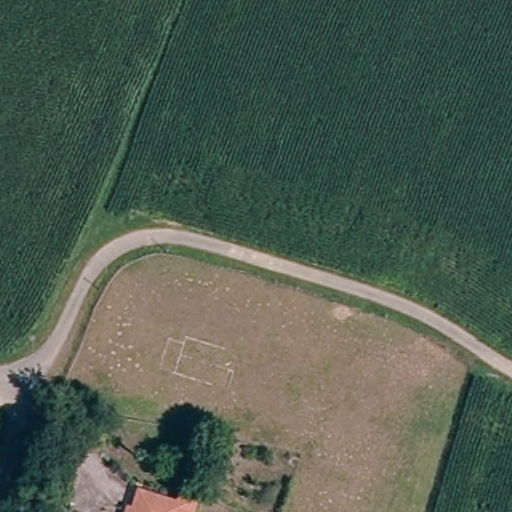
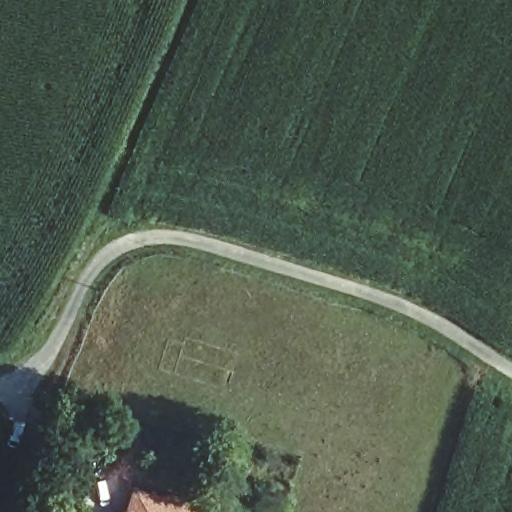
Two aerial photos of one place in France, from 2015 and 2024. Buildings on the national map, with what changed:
unchanged [(144,496),(188,506),(186,512),(139,512),(144,496)]

